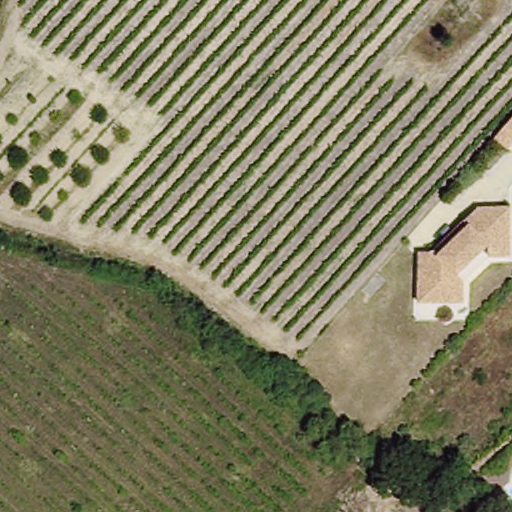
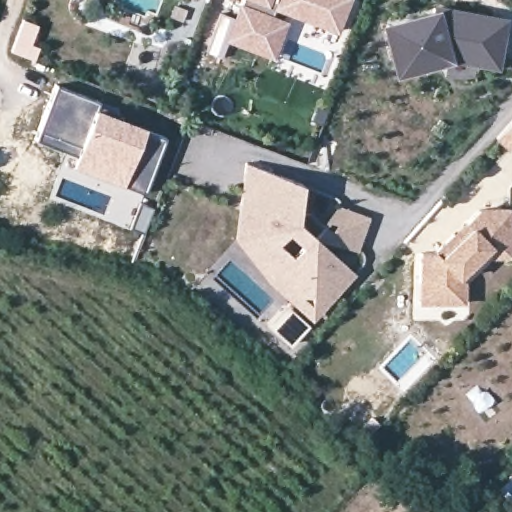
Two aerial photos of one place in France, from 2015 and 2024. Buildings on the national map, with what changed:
new [(337,31),(288,15),(272,57),(230,40),(244,0),(349,0),(337,31)]
new [(496,67),(486,65),(444,55),(398,70),(384,29),(430,14),(430,9),(497,20),(507,21),(496,67)]
new [(16,40),(23,20),(37,25),(29,45),(16,40)]
new [(99,101),(97,105),(117,112),(115,119),(165,137),(143,192),(120,185),(117,192),(60,171),(67,152),(35,138),(57,85),(99,101)]
unchanged [(502,140),(512,129),(512,150),(502,140)]
new [(248,162),(302,181),(297,217),(314,231),(337,204),(367,213),(355,248),(315,234),(351,263),(330,290),(300,291),(277,274),(262,229),(267,207),(243,202),(248,162)]
new [(243,202),(267,207),(262,229),(277,274),(300,291),(330,290),(351,263),(355,267),(317,315),(272,277),(240,236),(243,202)]
unchanged [(425,252),(445,251),(473,231),(470,220),(485,206),(512,206),(512,256),(492,254),(468,276),(469,302),(425,301),(425,252)]

